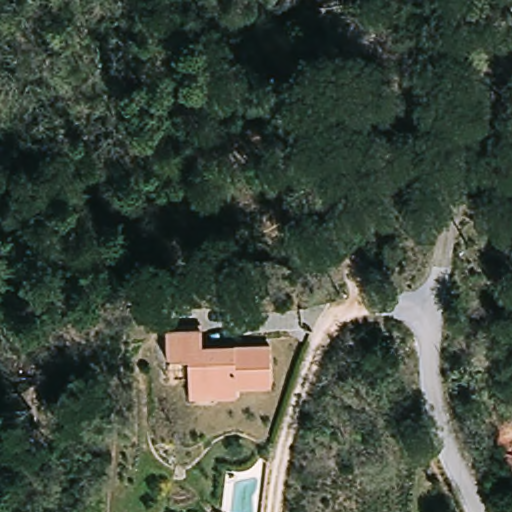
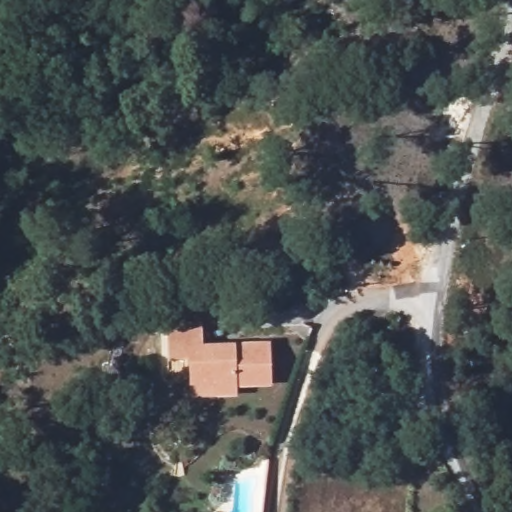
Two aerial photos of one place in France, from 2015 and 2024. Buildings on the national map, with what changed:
unchanged [(186,388),(185,354),(167,355),(166,325),(202,324),(203,341),(270,339),(272,386),(235,387),(235,399),(211,399),(187,400),(186,388)]

